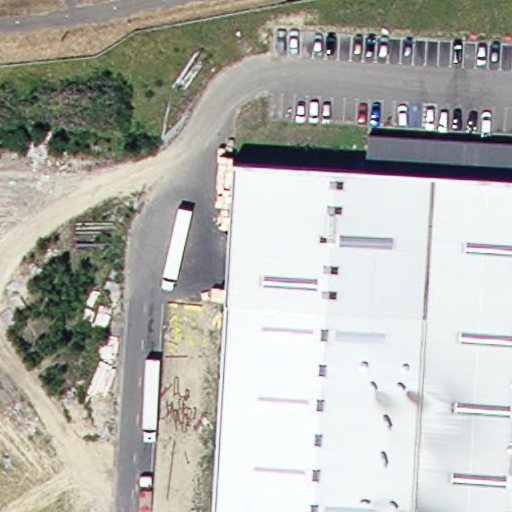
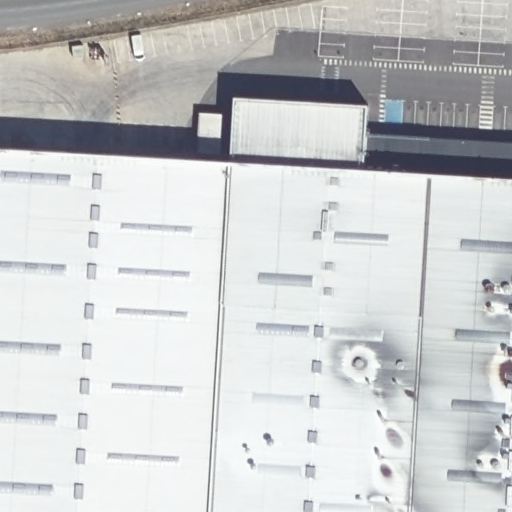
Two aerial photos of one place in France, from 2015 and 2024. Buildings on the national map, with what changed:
new [(367,135),(365,169),(234,159),(235,97),(368,106),(367,135)]
new [(200,113),(224,115),(221,155),(197,153),(200,113)]
new [(512,179),(365,169),(367,135),(512,144),(512,179)]
new [(234,159),(224,302),(212,512),(0,512),(0,147),(234,159)]
unchanged [(512,512),(413,512),(423,341),(425,322),(254,304),(224,302),(234,159),(512,180),(512,512)]
new [(254,304),(425,322),(423,341),(413,512),(212,512),(224,302),(254,304)]

